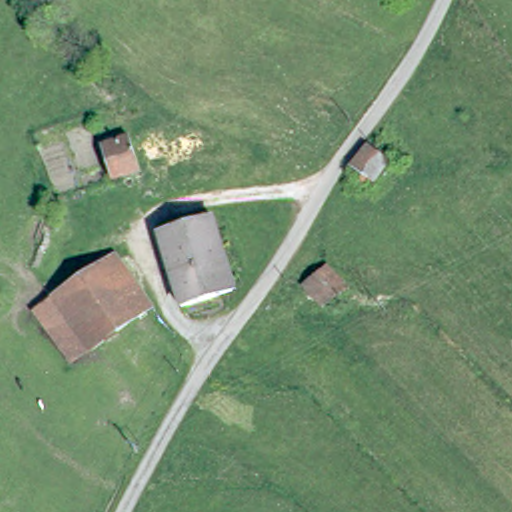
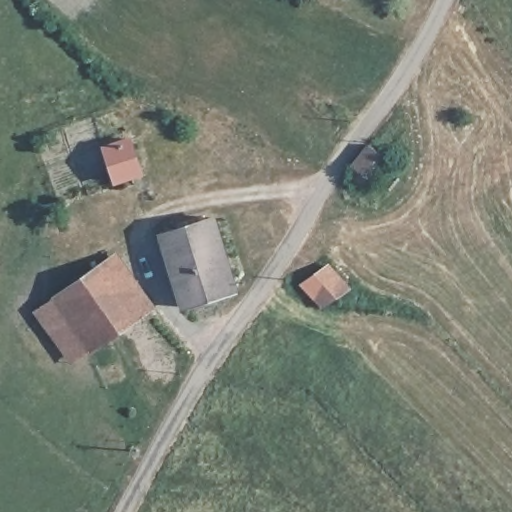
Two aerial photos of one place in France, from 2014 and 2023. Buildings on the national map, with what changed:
unchanged [(137,174),(111,182),(100,146),(126,139),(137,174)]
unchanged [(385,192),(375,190),(353,181),(350,180),(364,142),(399,155),(385,192)]
unchanged [(232,288),(182,306),(158,237),(210,220),(232,288)]
unchanged [(88,352),(51,299),(99,265),(117,252),(138,284),(153,305),(88,352)]
unchanged [(300,283),(327,261),(349,287),(325,307),(300,283)]
unchanged [(72,363),(34,312),(51,299),(88,352),(72,363)]

